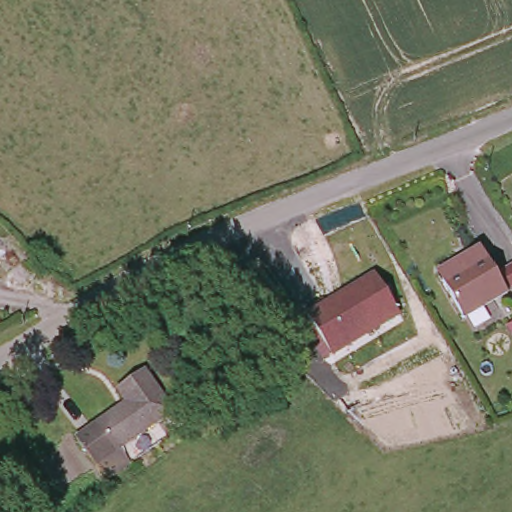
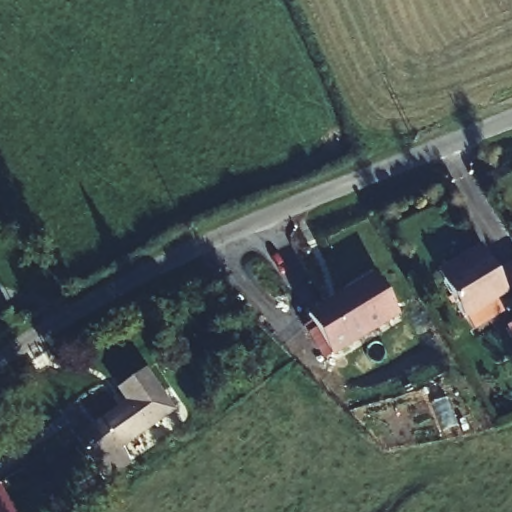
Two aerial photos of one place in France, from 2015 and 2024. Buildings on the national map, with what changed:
unchanged [(460,314),(439,278),(434,269),(477,243),(483,252),(505,288),(460,314)]
unchanged [(512,282),(509,284),(500,267),(512,259),(512,282)]
unchanged [(374,273),(399,311),(332,356),(306,317),(374,273)]
unchanged [(179,416),(102,472),(78,441),(128,405),(121,395),(150,376),(179,416)]
new [(0,512),(0,490),(14,512),(0,512)]

